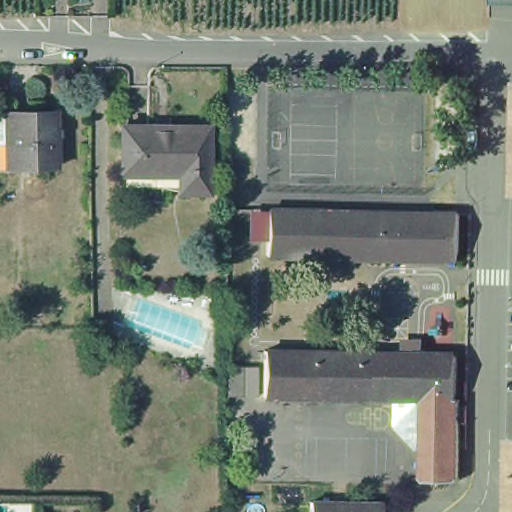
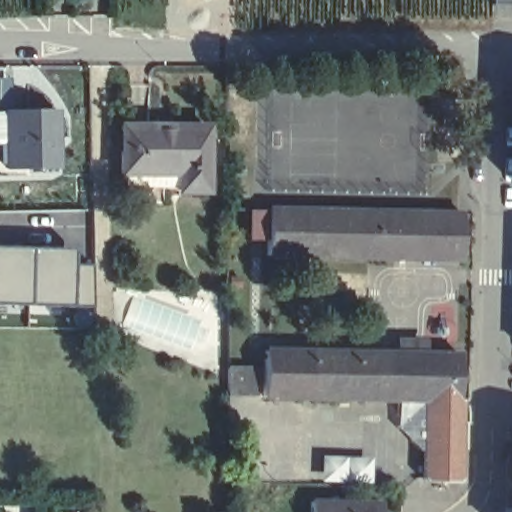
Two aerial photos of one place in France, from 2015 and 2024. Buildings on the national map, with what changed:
unchanged [(495,0),(512,0),(512,5),(495,5),(495,0)]
unchanged [(54,168),(4,169),(3,144),(0,144),(0,113),(2,113),(53,112),(54,168)]
unchanged [(125,179),(122,179),(119,173),(120,126),(125,126),(162,126),(205,127),(205,190),(179,190),(179,188),(162,185),(125,179)]
unchanged [(456,214),(455,259),(260,254),(261,209),(456,214)]
new [(78,248),(77,266),(94,266),(95,309),(0,306),(0,246),(78,248)]
unchanged [(390,398),(263,395),(264,349),(459,354),(457,400),(390,398)]
unchanged [(255,396),(227,395),(227,365),(255,366),(255,396)]
unchanged [(458,478),(454,480),(425,480),(420,476),(420,448),(415,447),(405,439),(390,426),(390,411),(390,398),(457,400),(460,400),(458,478)]
unchanged [(512,512),(510,512),(512,440),(512,512)]
unchanged [(310,512),(310,505),(330,505),(378,507),(378,512),(310,512)]

